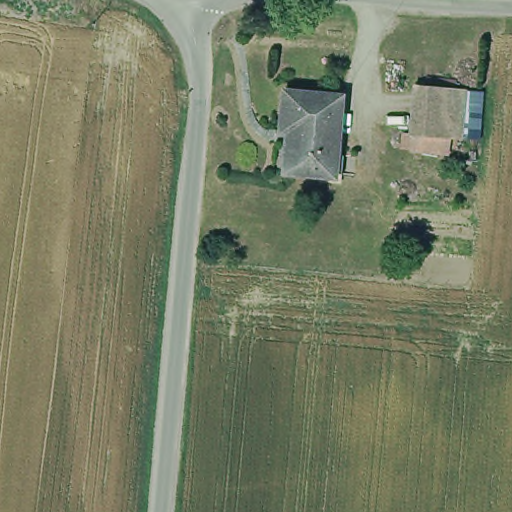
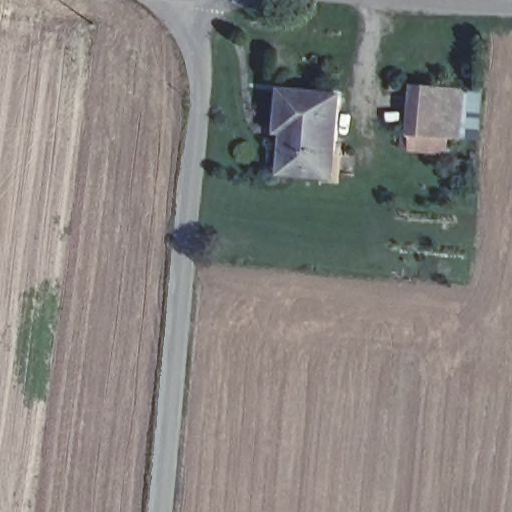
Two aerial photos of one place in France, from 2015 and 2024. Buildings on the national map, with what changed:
unchanged [(459,84),(451,134),(441,132),(439,147),(401,141),(412,77),(459,84)]
unchanged [(336,91),(329,171),(281,167),(284,127),(274,126),(278,85),(336,91)]

